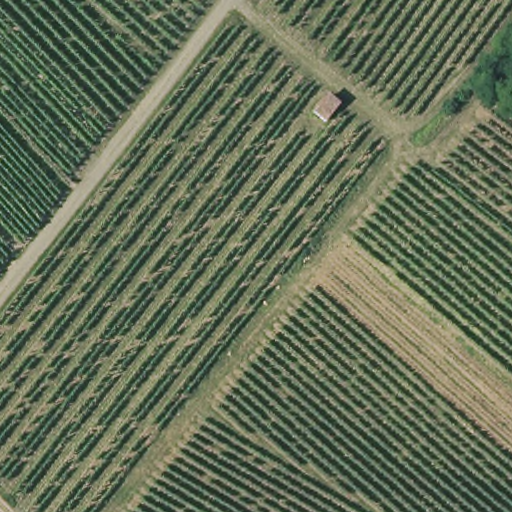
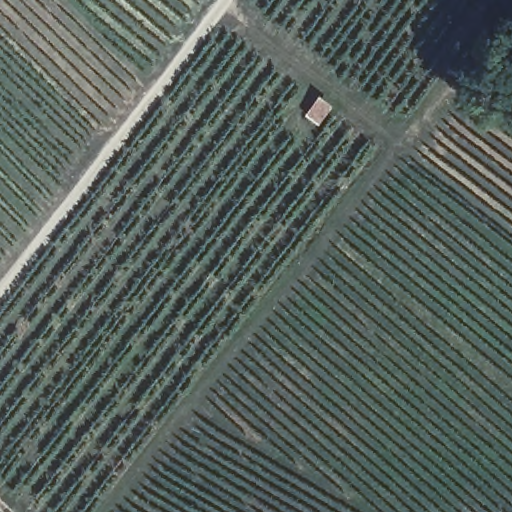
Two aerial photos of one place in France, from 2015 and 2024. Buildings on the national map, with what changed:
unchanged [(309,113),(319,99),(332,109),(322,123),(309,113)]

